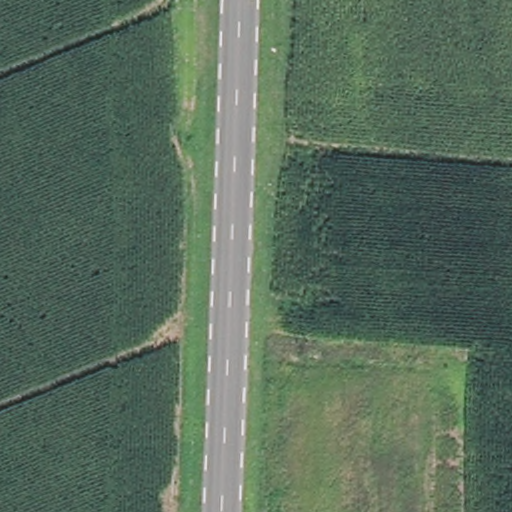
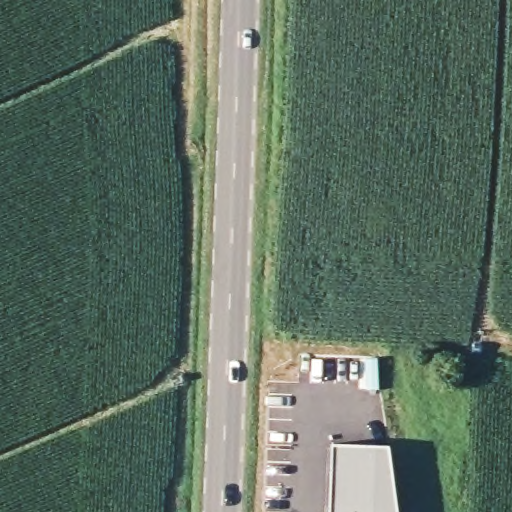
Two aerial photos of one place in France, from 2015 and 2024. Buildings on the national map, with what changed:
new [(331,443),(390,445),(399,512),(327,512),(331,443)]

